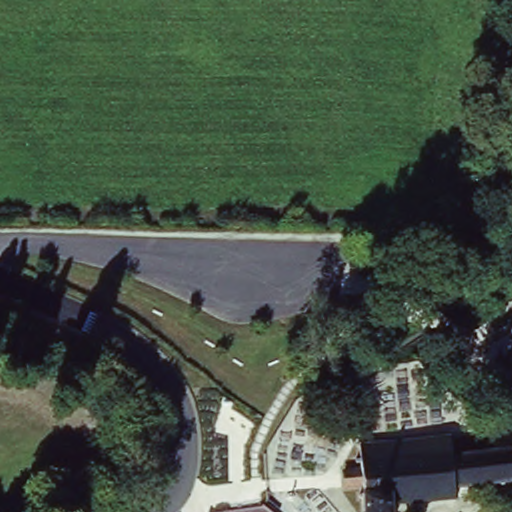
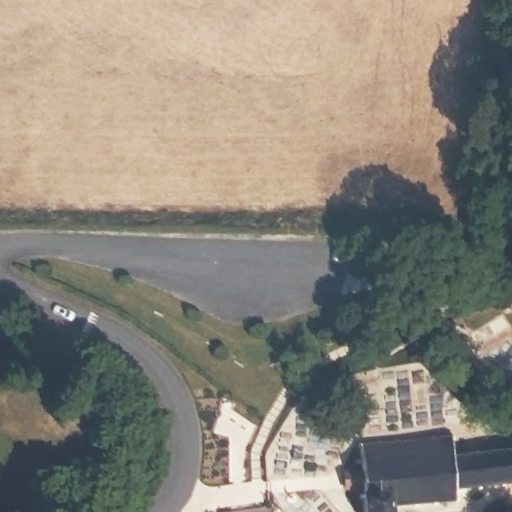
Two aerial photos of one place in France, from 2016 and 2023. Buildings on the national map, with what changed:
unchanged [(355,458),(356,428),(362,429),(362,434),(377,434),(375,427),(390,429),(390,434),(398,433),(398,428),(411,430),(411,436),(422,434),(420,426),(430,429),(430,434),(441,434),(441,428),(454,430),(452,458),(462,459),(464,451),(480,452),(478,460),(492,459),(491,451),(504,452),(503,459),(512,459),(512,488),(506,489),(508,499),(495,497),(496,491),(482,491),(482,499),(462,497),(462,489),(452,491),(453,509),(442,507),(442,498),(436,499),(437,509),(425,508),(426,499),(417,501),(418,507),(407,507),(407,499),(398,501),(398,509),(391,508),(391,512),(358,512),(358,501),(349,499),(350,484),(338,486),(340,456),(355,458)]

